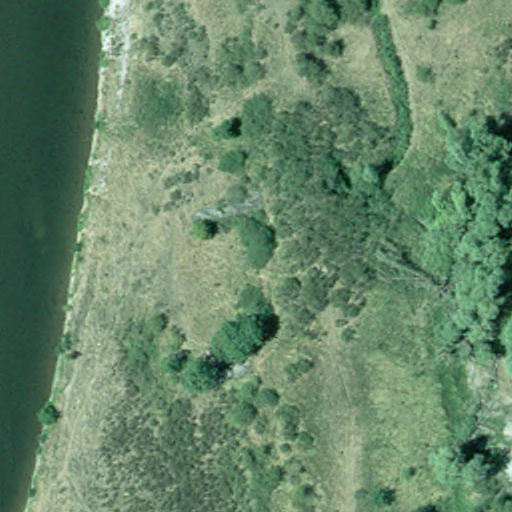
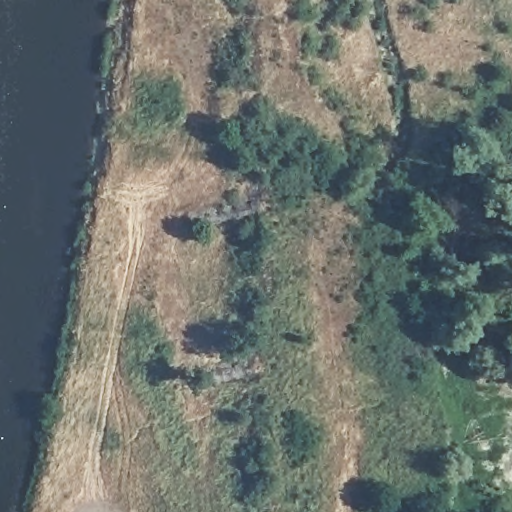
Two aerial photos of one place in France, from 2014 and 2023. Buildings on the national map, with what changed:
[]

